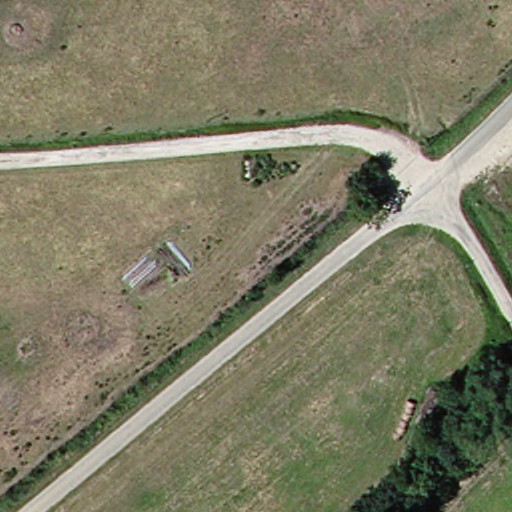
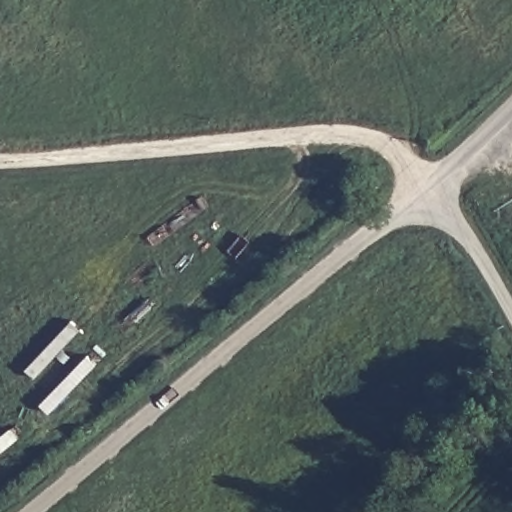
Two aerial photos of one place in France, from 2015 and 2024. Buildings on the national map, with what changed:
unchanged [(386,187),(396,201),(379,213),(368,199),(386,187)]

